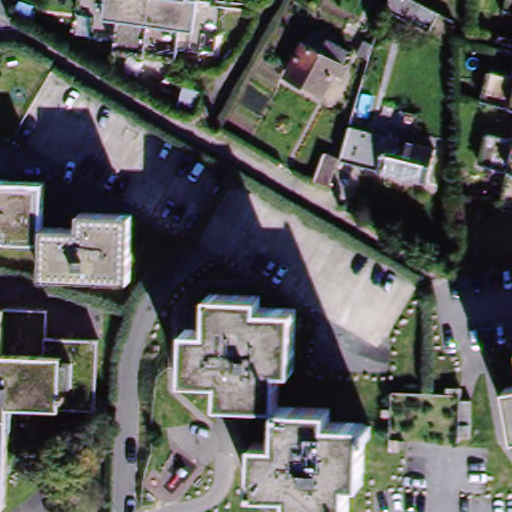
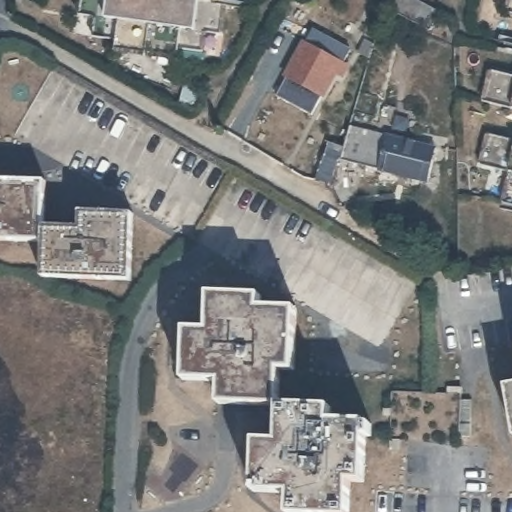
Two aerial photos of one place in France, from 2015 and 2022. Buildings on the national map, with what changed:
unchanged [(226,35),(202,31),(200,50),(182,48),(180,59),(120,50),(121,39),(102,36),(105,16),(83,14),(85,0),(198,0),(220,0),(220,3),(229,4),(226,35)]
unchanged [(405,17),(387,7),(392,0),(417,0),(442,14),(432,32),(405,17)]
unchanged [(508,0),(512,0),(512,13),(505,11),(508,0)]
unchanged [(341,76),(335,72),(322,95),(287,77),(303,46),(310,50),(317,35),(349,51),(342,65),(345,67),(341,76)]
unchanged [(357,55),(363,41),(371,45),(367,59),(357,55)]
unchanged [(490,72),(512,78),(512,108),(482,100),(490,72)]
unchanged [(371,122),(391,127),(390,131),(415,138),(412,145),(435,151),(427,181),(339,159),(348,128),(367,134),(371,122)]
unchanged [(480,165),(487,135),(512,141),(512,178),(507,172),(480,165)]
unchanged [(330,189),(315,183),(325,154),(339,159),(330,189)]
unchanged [(47,237),(47,244),(24,243),(0,242),(0,181),(14,182),(32,182),(49,184),(48,227),(47,237)]
unchanged [(512,186),(512,204),(508,203),(512,186)]
unchanged [(67,229),(85,229),(85,214),(131,215),(137,215),(137,232),(135,277),(135,282),(116,282),(83,281),(62,280),(47,280),(47,244),(47,237),(48,227),(67,229)]
unchanged [(241,405),(223,405),(223,399),(223,382),(211,382),(188,382),(188,375),(190,331),(211,331),(212,317),(214,296),(221,296),(265,297),(265,308),(300,310),(299,353),(298,372),(292,372),(285,372),(283,407),(241,405)]
demolished [(13,408),(11,506),(0,506),(0,310),(8,310),(8,355),(49,357),(67,357),(67,410),(13,408)]
demolished [(50,311),(49,357),(8,355),(8,310),(50,311)]
demolished [(50,340),(102,341),(101,411),(67,410),(67,357),(60,357),(49,357),(50,340)]
unchanged [(512,387),(512,418),(506,388),(512,387)]
unchanged [(290,407),(336,408),(335,422),(370,423),(369,465),(368,483),(361,483),(354,483),(353,512),(293,512),(293,511),(293,494),(281,494),(258,493),(258,486),(260,442),(282,442),(283,426),(283,407),(290,407)]

